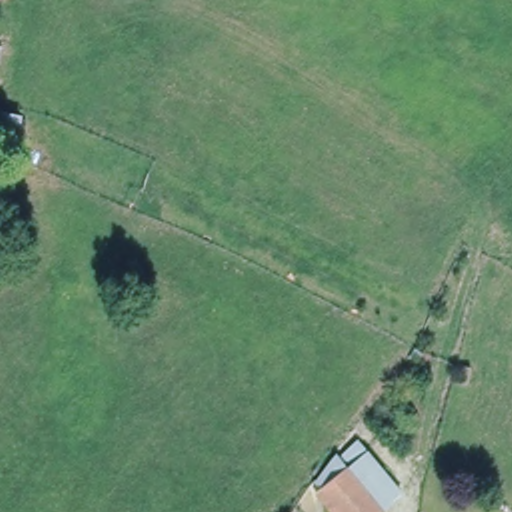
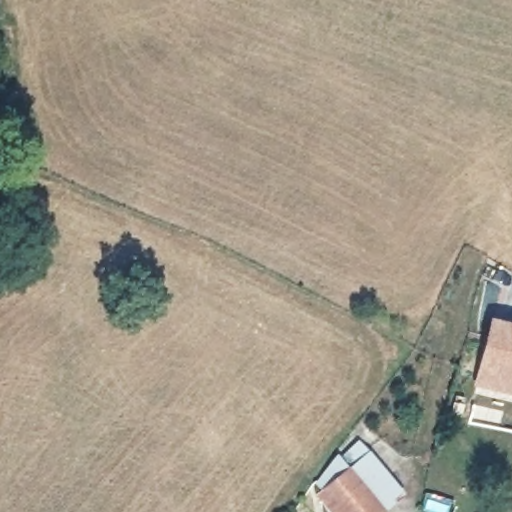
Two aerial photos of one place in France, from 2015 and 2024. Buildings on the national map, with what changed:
new [(512,392),(474,384),(490,317),(512,323),(512,392)]
unchanged [(354,463),(347,454),(361,442),(368,451),(371,449),(405,489),(382,508),(348,468),(354,463)]
unchanged [(377,512),(342,512),(323,489),(348,468),(382,508),(377,512)]

